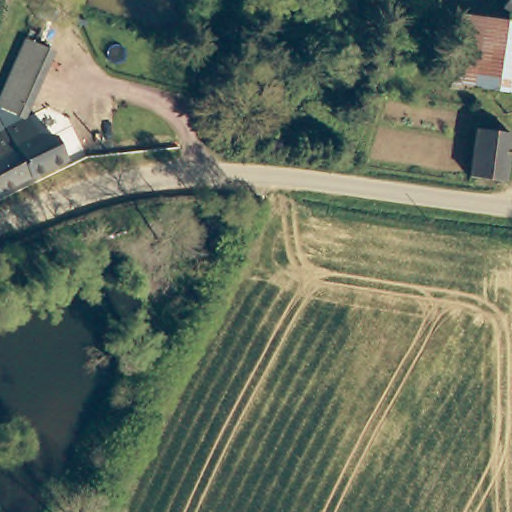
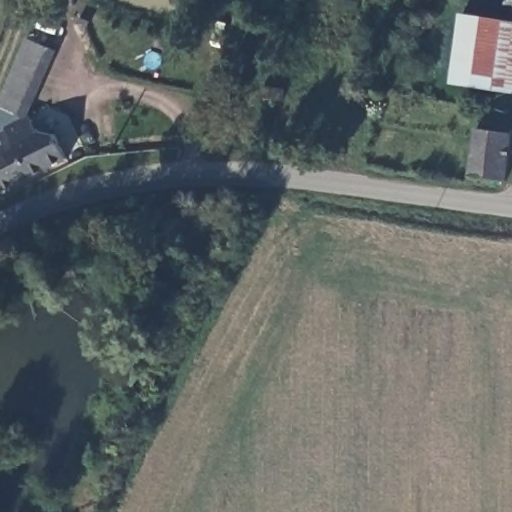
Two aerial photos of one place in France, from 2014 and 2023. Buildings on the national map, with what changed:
unchanged [(512,90),(448,79),(460,12),(512,23),(512,90)]
unchanged [(22,48),(43,58),(14,125),(0,120),(0,101),(16,61),(22,48)]
unchanged [(512,147),(505,176),(468,171),(479,124),(512,132),(512,147)]
unchanged [(52,128),(65,152),(0,186),(0,134),(15,127),(33,126),(35,129),(38,125),(52,128)]

